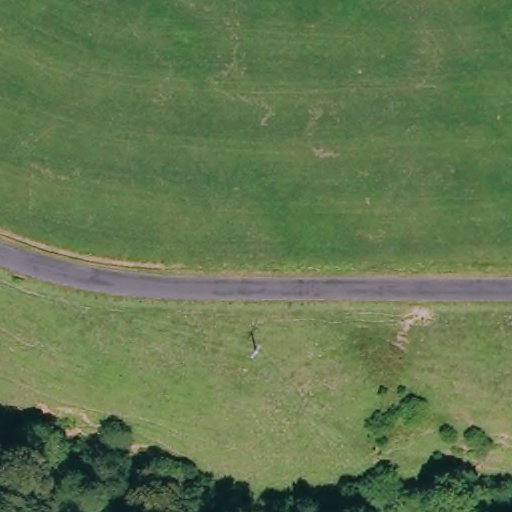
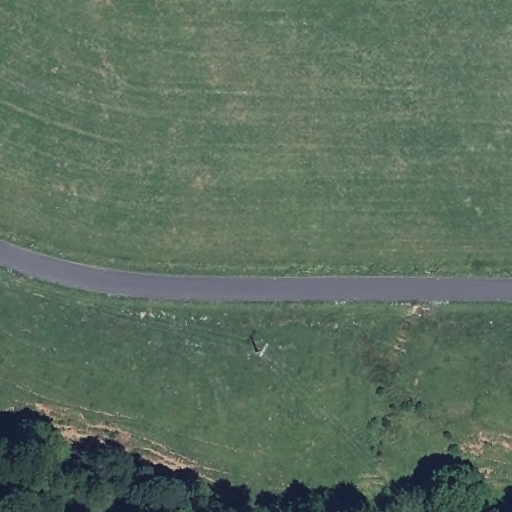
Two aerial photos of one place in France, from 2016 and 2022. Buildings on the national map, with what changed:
[]

